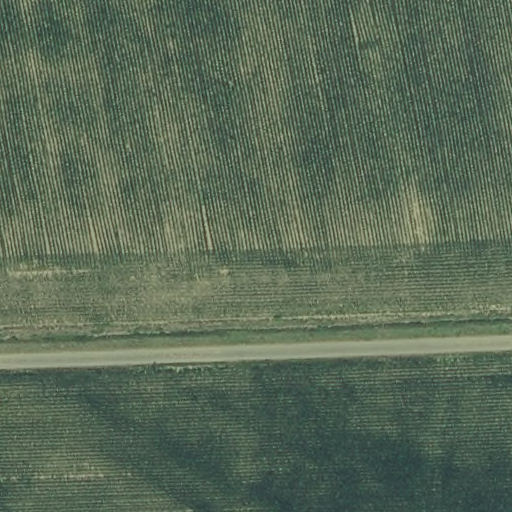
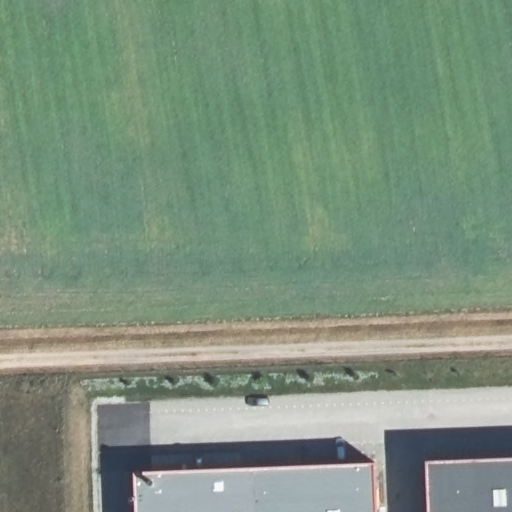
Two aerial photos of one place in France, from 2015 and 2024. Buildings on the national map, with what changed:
unchanged [(512,457),(512,512),(428,512),(426,460),(512,457)]
new [(129,474),(370,465),(371,512),(131,512),(129,474)]

